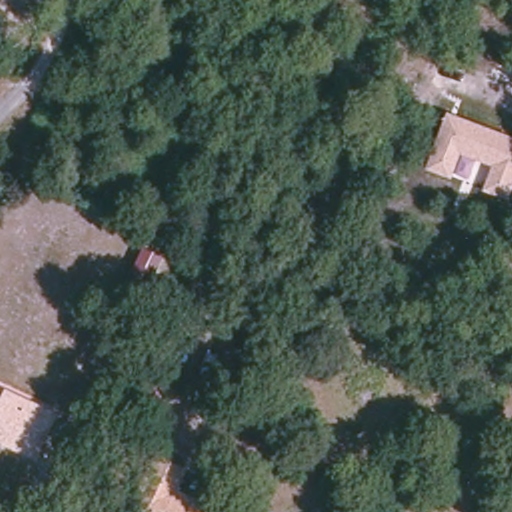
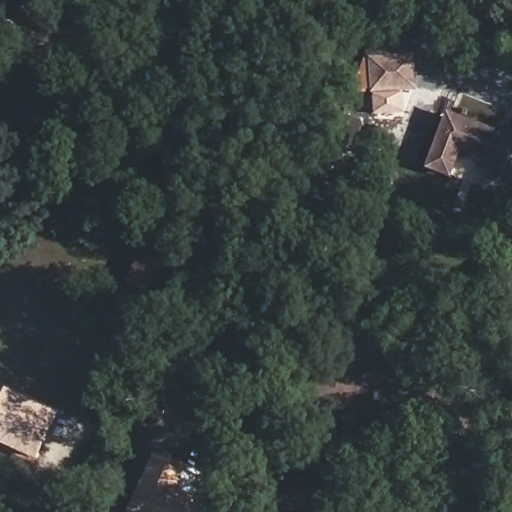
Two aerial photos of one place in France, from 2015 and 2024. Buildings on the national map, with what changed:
new [(417,90),(403,92),(404,113),(374,115),(373,92),(358,94),(356,79),(367,55),(414,54),(417,90)]
unchanged [(510,202),(483,192),(492,165),(477,159),(470,179),(454,174),(452,180),(426,172),(449,113),(512,137),(512,195),(510,202)]
unchanged [(25,401),(55,416),(34,458),(0,441),(0,401),(4,391),(25,401)]
unchanged [(166,443),(143,432),(158,400),(182,411),(166,443)]
unchanged [(171,479),(199,492),(190,512),(155,512),(158,507),(134,496),(155,448),(180,458),(171,479)]

